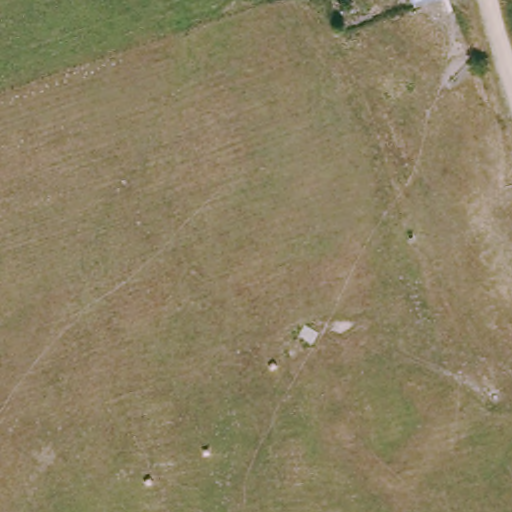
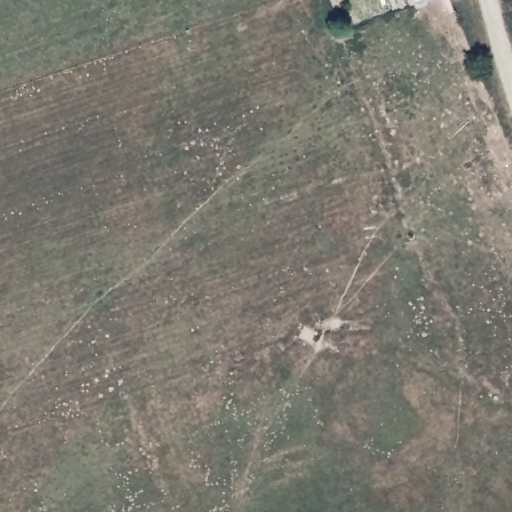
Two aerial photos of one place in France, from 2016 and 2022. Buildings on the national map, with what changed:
unchanged [(415,7),(412,0),(431,0),(415,7)]

